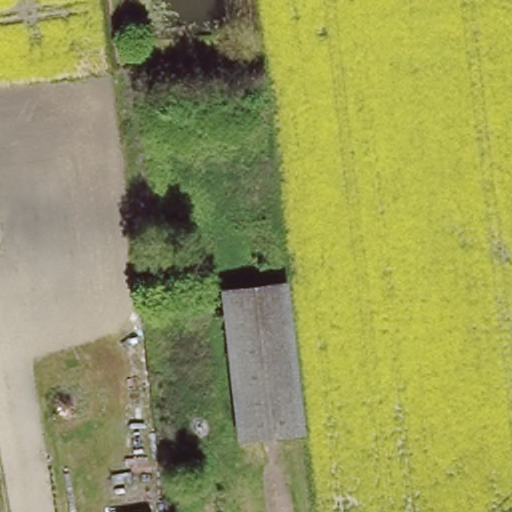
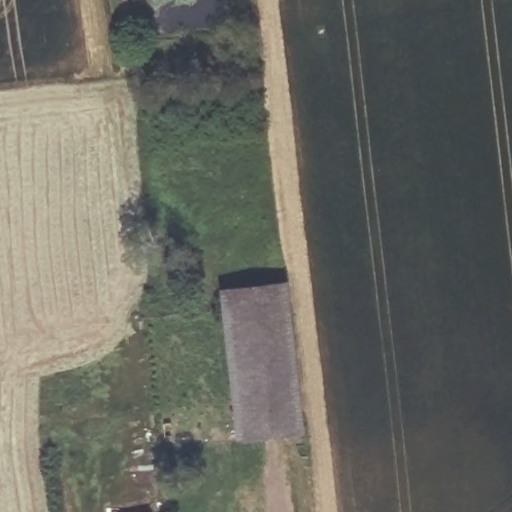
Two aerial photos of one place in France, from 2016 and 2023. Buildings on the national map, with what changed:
unchanged [(302,428),(237,435),(221,286),(285,280),(302,428)]

